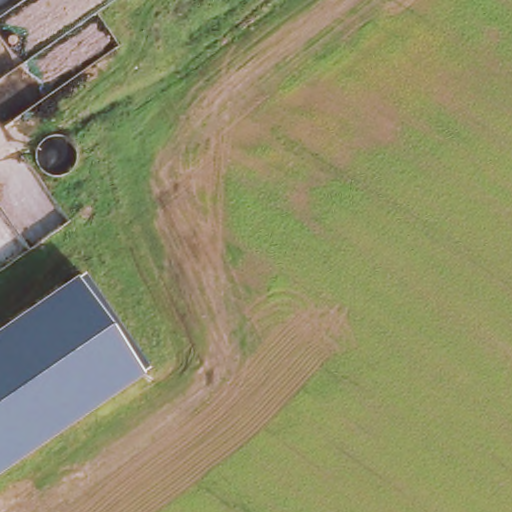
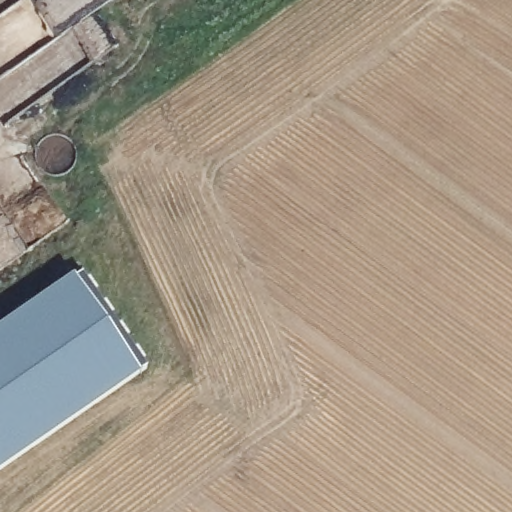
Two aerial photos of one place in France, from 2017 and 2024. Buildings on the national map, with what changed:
unchanged [(147,368),(141,375),(0,471),(0,331),(77,280),(83,275),(147,368)]

